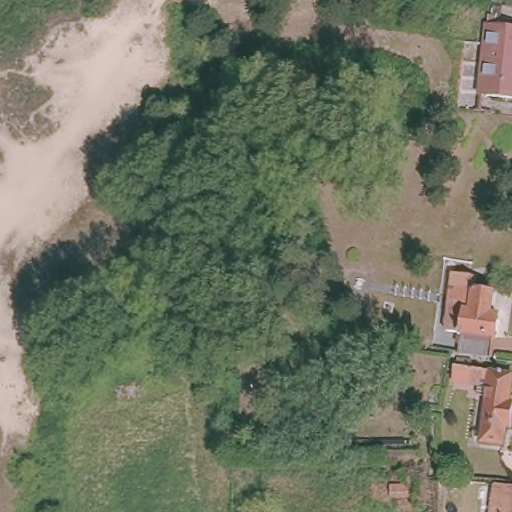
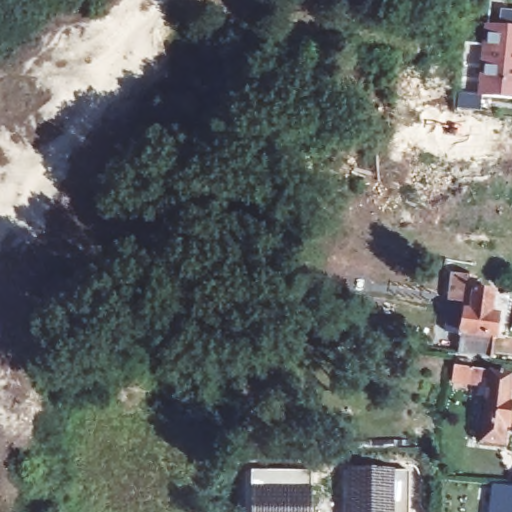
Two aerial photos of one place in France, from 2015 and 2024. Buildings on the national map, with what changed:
unchanged [(512,94),(480,90),(487,37),(488,20),(512,23),(512,94)]
unchanged [(462,328),(448,326),(455,270),(479,273),(477,285),(497,288),(494,310),(501,310),(498,333),(495,333),(492,355),(460,349),(462,328)]
unchanged [(456,377),(458,361),(512,369),(512,383),(510,397),(512,398),(512,424),(507,422),(505,440),(482,438),(488,383),(456,377)]
new [(348,512),(350,469),(408,471),(408,512),(348,512)]
new [(250,512),(250,470),(310,471),(310,512),(250,512)]
unchanged [(512,482),(512,512),(493,512),(497,480),(512,482)]

